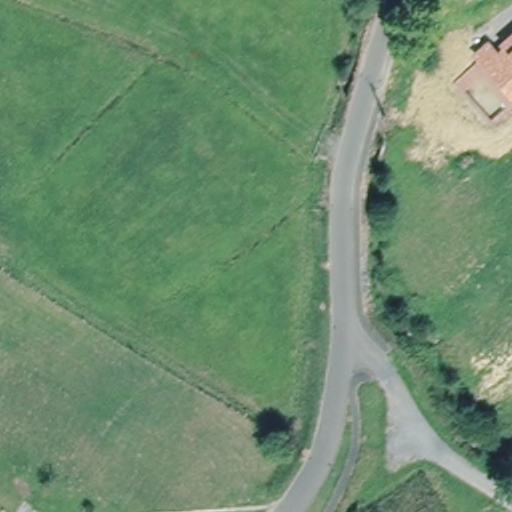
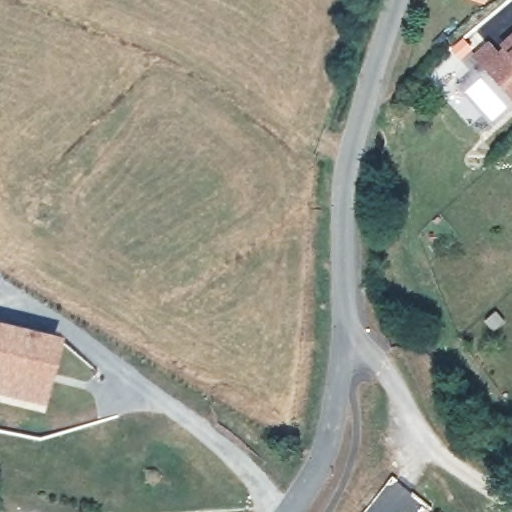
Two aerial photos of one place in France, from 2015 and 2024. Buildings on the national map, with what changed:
unchanged [(498,51),(502,48),(499,44),(512,32),(512,99),(473,55),(488,40),(498,51)]
new [(47,403),(0,392),(0,323),(61,337),(47,403)]

